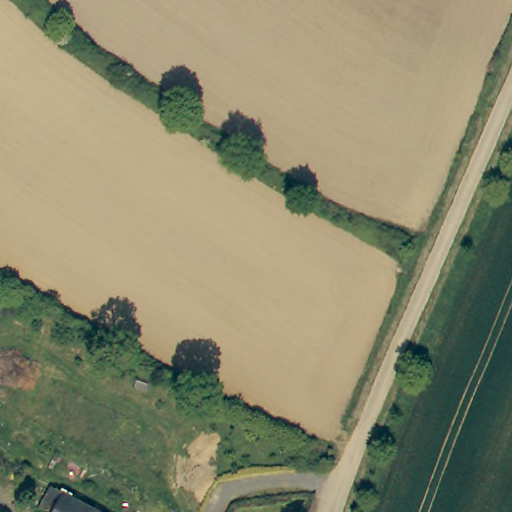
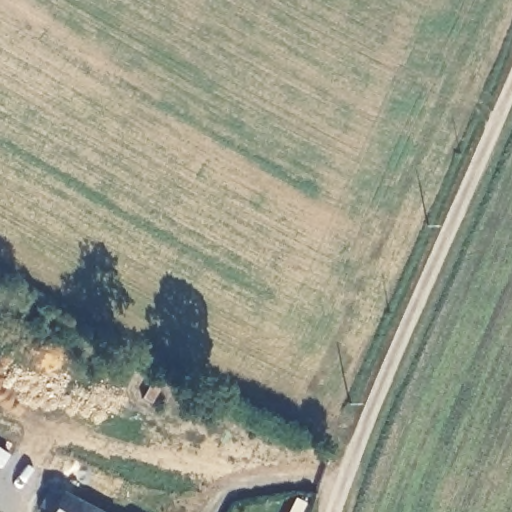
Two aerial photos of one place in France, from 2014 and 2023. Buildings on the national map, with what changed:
unchanged [(156,393),(141,390),(144,374),(160,377),(156,393)]
unchanged [(49,482),(53,485),(100,512),(46,512),(36,505),(49,482)]
unchanged [(116,512),(111,512),(113,510),(116,512)]

